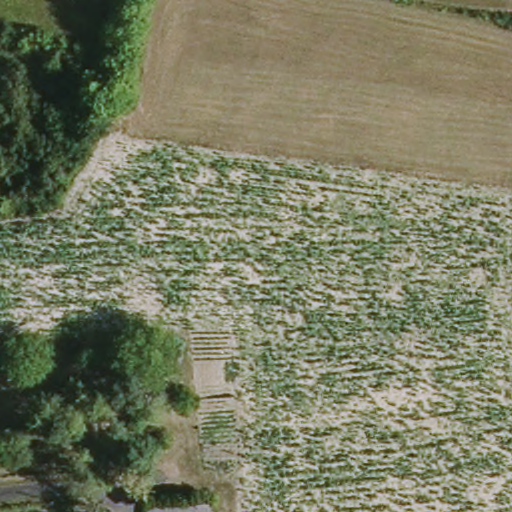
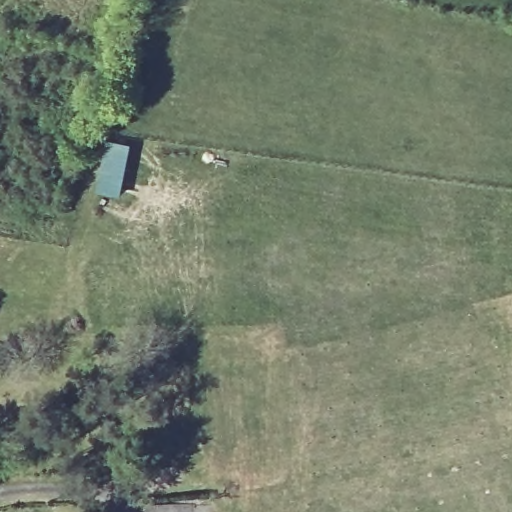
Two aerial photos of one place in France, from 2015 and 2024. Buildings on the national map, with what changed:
new [(126,195),(101,194),(103,142),(128,143),(126,195)]
unchanged [(214,505),(214,512),(153,512),(153,505),(214,505)]

